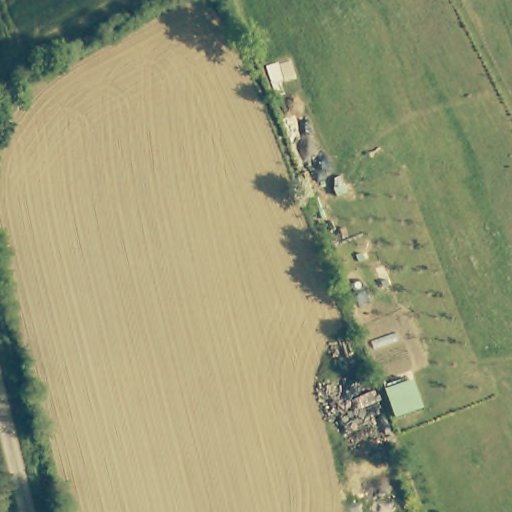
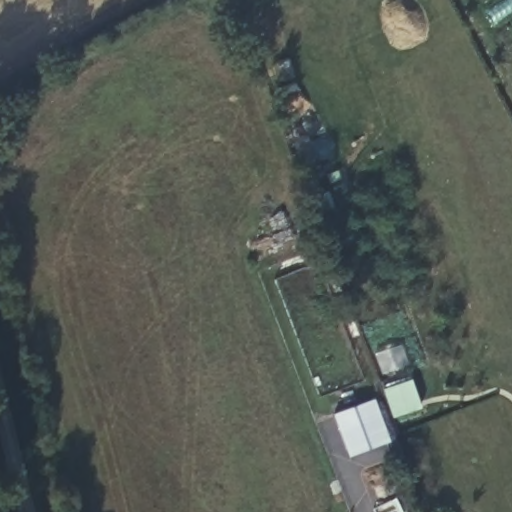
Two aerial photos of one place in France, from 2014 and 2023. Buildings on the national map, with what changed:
new [(411,379),(422,408),(394,417),(384,389),(411,379)]
new [(391,442),(350,458),(334,413),(376,398),(391,442)]

